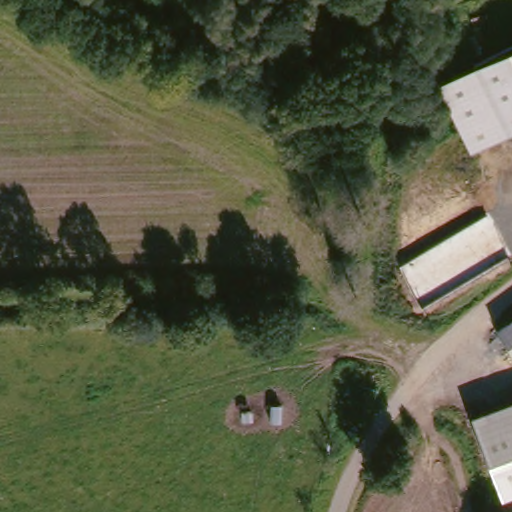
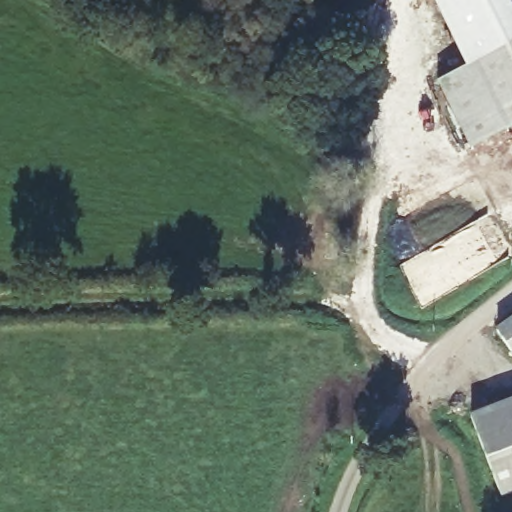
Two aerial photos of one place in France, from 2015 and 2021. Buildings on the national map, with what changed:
new [(468,71),(433,0),(512,0),(512,49),(468,71)]
unchanged [(469,151),(438,85),(512,49),(512,130),(469,151)]
unchanged [(503,328),(512,321),(512,342),(503,328)]
unchanged [(501,497),(472,415),(512,401),(512,494),(501,497)]

